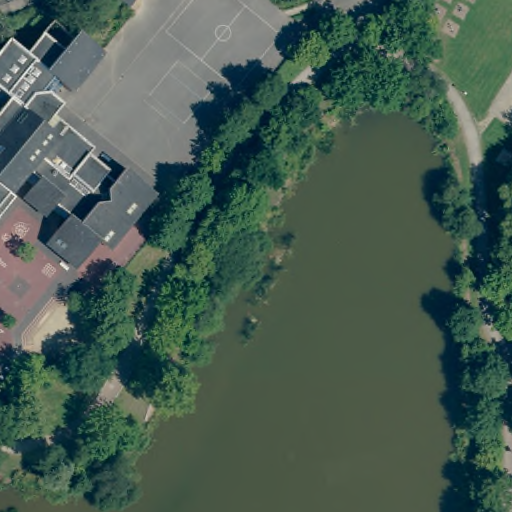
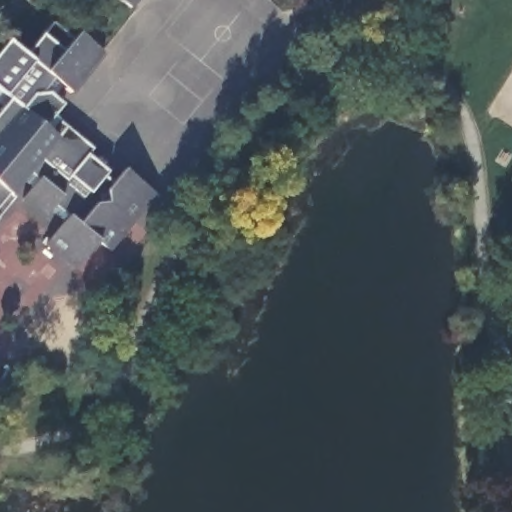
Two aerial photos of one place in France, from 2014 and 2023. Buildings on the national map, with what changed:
unchanged [(126,4),(121,0),(129,0),(126,4)]
unchanged [(11,37),(28,50),(54,19),(75,35),(79,30),(103,50),(73,87),(64,81),(54,93),(63,101),(54,112),(94,144),(90,150),(110,168),(107,172),(115,178),(126,165),(157,191),(111,246),(101,238),(77,266),(47,241),(68,217),(54,206),(48,212),(25,194),(34,183),(25,177),(13,191),(17,194),(0,214),(0,50),(11,37)]

